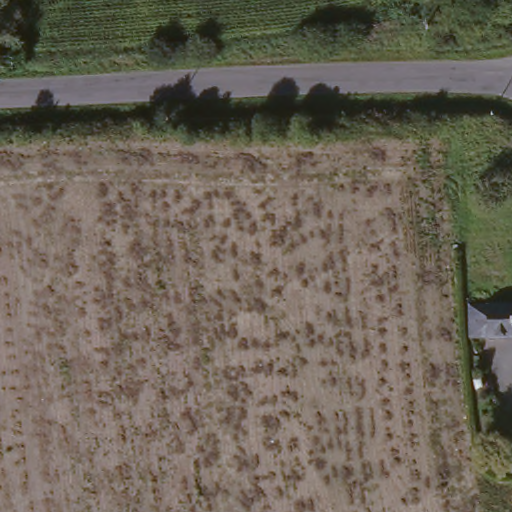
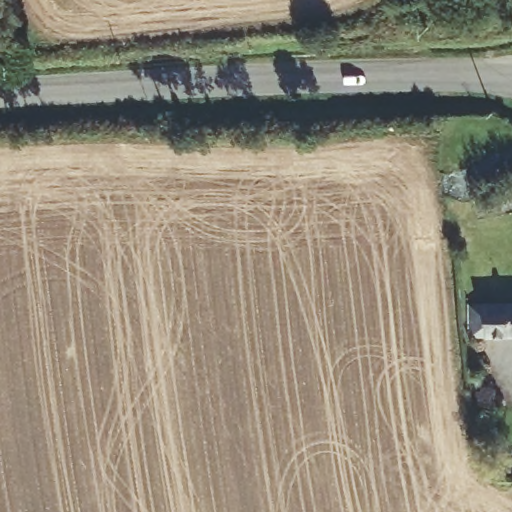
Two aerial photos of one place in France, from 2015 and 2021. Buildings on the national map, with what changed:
unchanged [(474,340),(476,305),(512,304),(512,339),(480,340),(474,340)]

